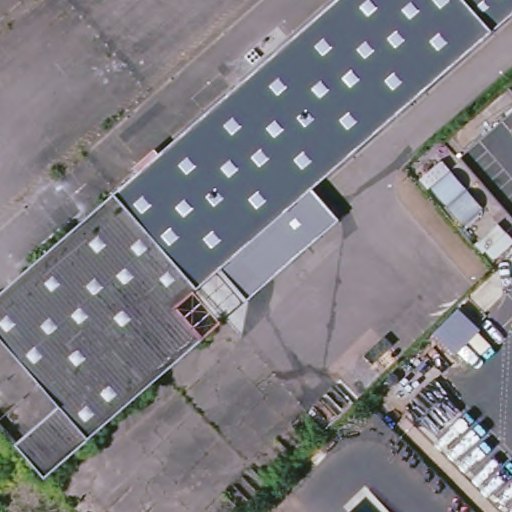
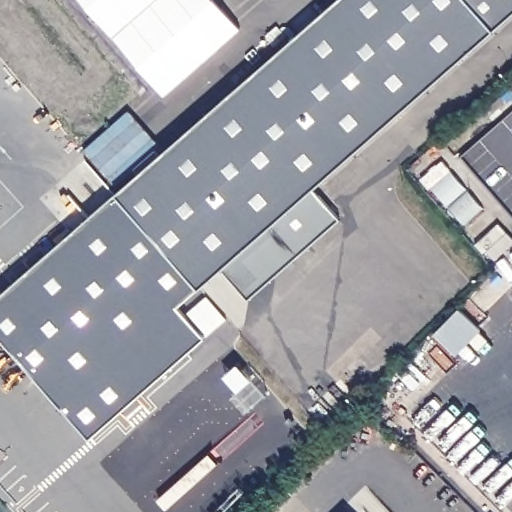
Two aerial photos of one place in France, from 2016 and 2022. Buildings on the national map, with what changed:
unchanged [(65,405),(0,331),(0,300),(187,137),(344,0),(512,0),(512,17),(318,189),(345,220),(54,475),(23,441),(65,405)]
new [(83,0),(157,0),(115,37),(83,0)]
new [(165,95),(115,37),(157,0),(214,0),(240,30),(165,95)]
unchanged [(428,330),(453,301),(476,321),(452,346),(428,330)]

